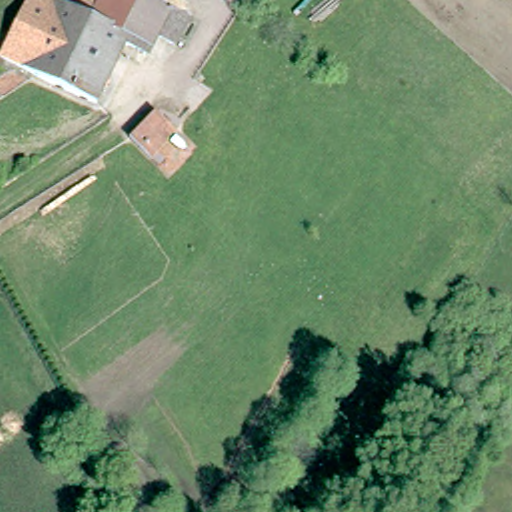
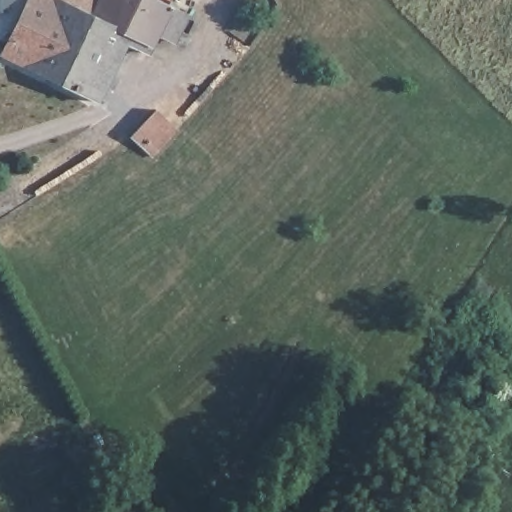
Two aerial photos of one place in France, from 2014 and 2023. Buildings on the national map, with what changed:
unchanged [(95,0),(156,0),(172,9),(187,18),(174,44),(158,35),(150,50),(147,54),(126,42),(92,105),(0,55),(0,52),(27,0),(55,0),(87,16),(95,0)]
unchanged [(55,0),(95,0),(87,16),(55,0)]
unchanged [(174,125),(147,154),(127,133),(154,106),(174,125)]

